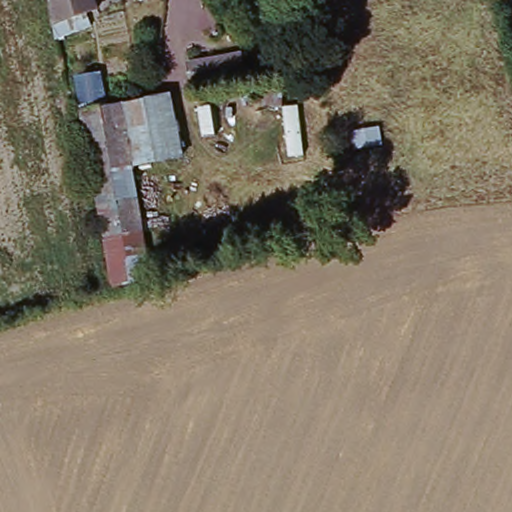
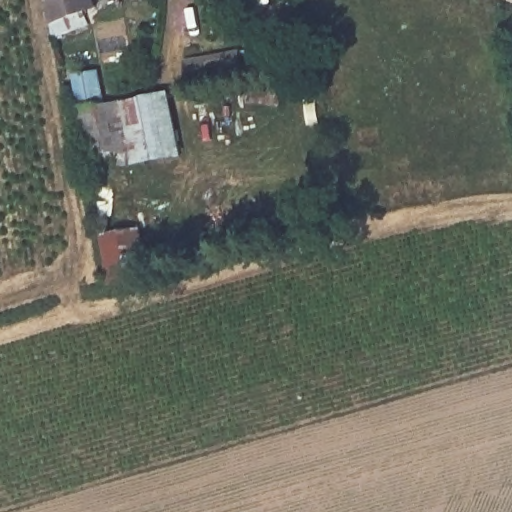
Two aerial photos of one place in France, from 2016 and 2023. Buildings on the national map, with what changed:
unchanged [(97,8),(49,21),(47,0),(95,0),(97,8)]
unchanged [(243,51),(244,74),(194,84),(190,60),(243,51)]
unchanged [(165,103),(173,156),(122,165),(113,112),(165,103)]
unchanged [(122,165),(134,234),(102,241),(81,117),(113,112),(122,165)]

